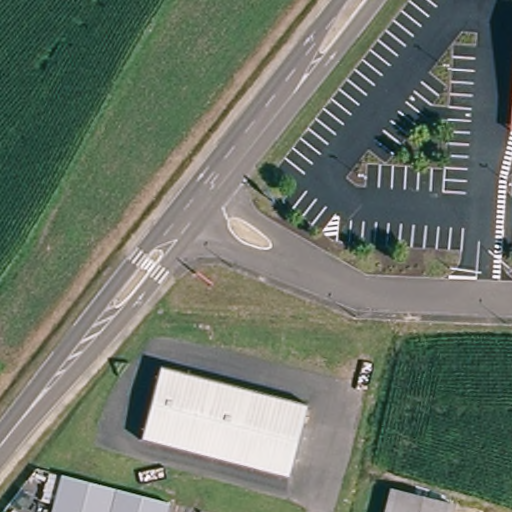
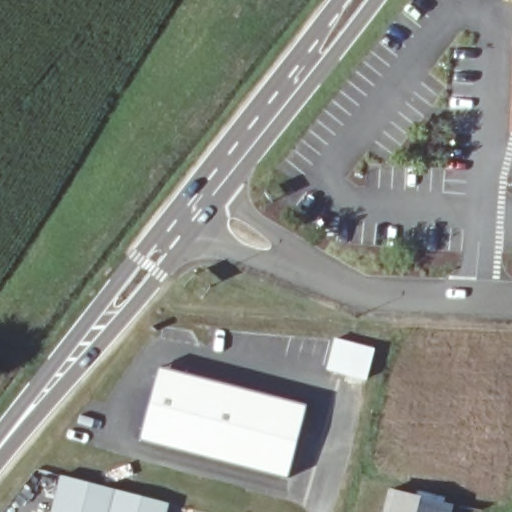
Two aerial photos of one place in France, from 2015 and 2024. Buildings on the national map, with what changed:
new [(327,371),(335,338),(375,347),(367,380),(327,371)]
unchanged [(162,383),(176,375),(314,404),(298,478),(149,447),(162,383)]
unchanged [(85,483),(78,512),(52,512),(60,477),(85,483)]
unchanged [(78,512),(85,483),(167,503),(165,512),(78,512)]
unchanged [(462,502),(460,512),(395,512),(401,487),(462,502)]

